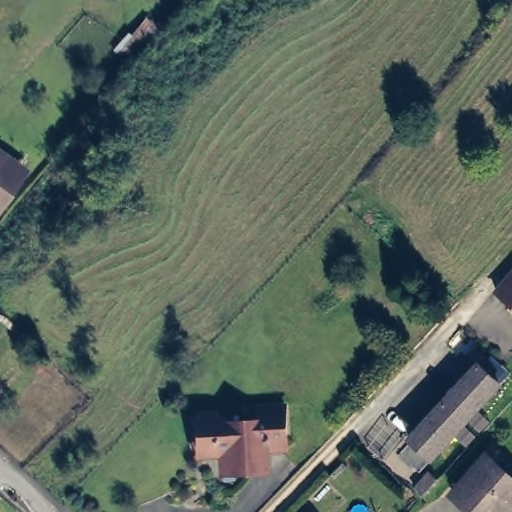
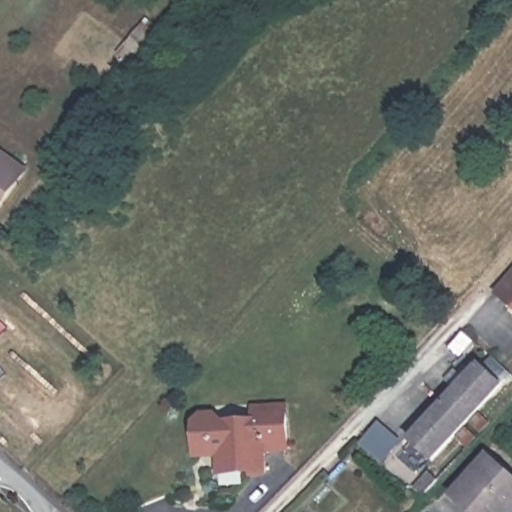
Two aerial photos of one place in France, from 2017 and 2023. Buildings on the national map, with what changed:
unchanged [(20,173),(0,200),(0,152),(23,169),(20,173)]
unchanged [(512,270),(512,308),(492,291),(512,270)]
unchanged [(477,364),(494,380),(430,456),(412,439),(477,364)]
unchanged [(202,456),(202,432),(204,425),(206,423),(207,417),(213,417),(220,416),(235,428),(260,424),(260,412),(292,409),(295,454),(273,456),(272,475),(252,477),(244,471),(227,471),(220,460),(202,460),(202,456)]
unchanged [(490,454),(512,476),(512,512),(509,512),(505,508),(501,512),(482,512),(457,488),(490,454)]

